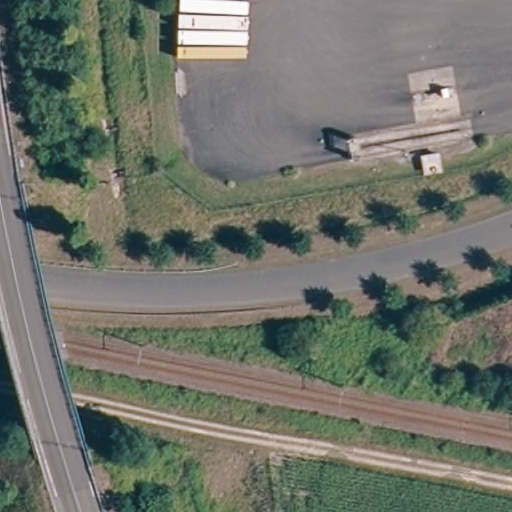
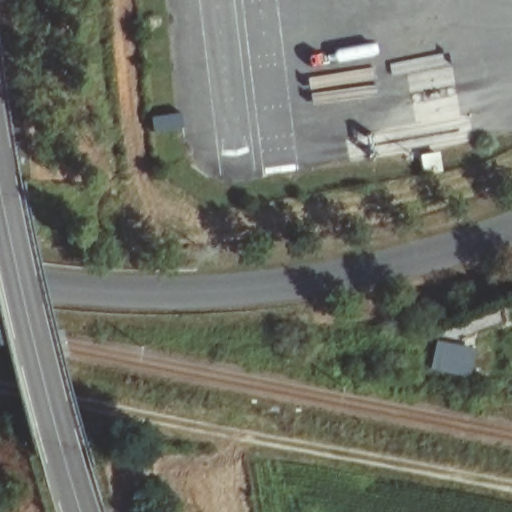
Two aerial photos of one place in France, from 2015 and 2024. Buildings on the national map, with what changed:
new [(477,350),(472,379),(432,371),(438,342),(477,350)]

